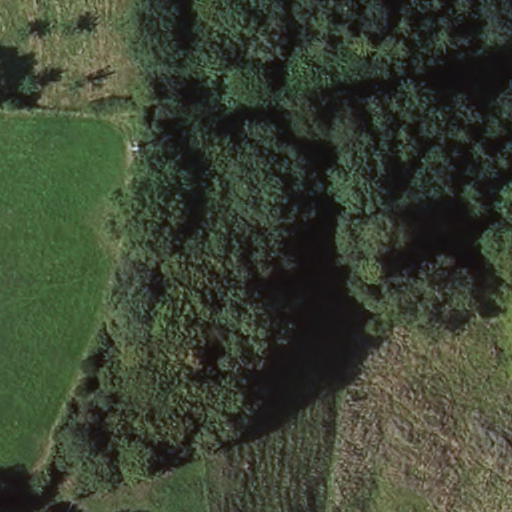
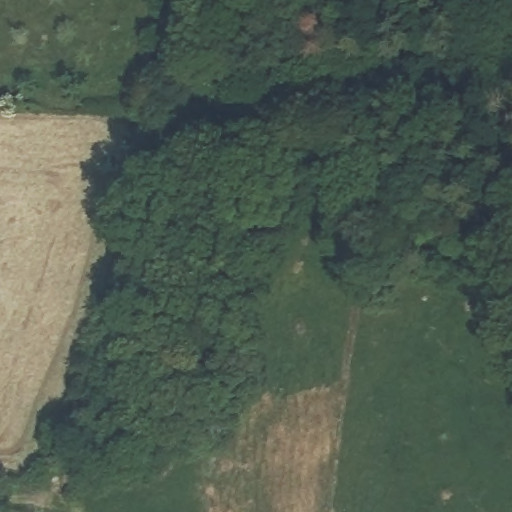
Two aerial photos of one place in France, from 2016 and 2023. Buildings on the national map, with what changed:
unchanged [(503,214),(512,216),(512,227),(502,226),(503,214)]

